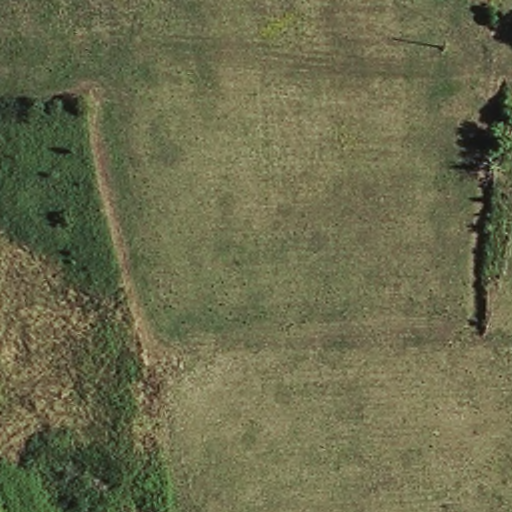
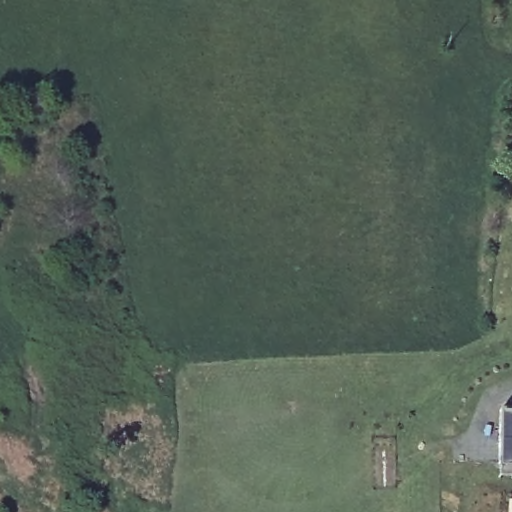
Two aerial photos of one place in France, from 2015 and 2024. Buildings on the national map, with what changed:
new [(501,471),(502,414),(512,415),(512,471),(501,471)]

